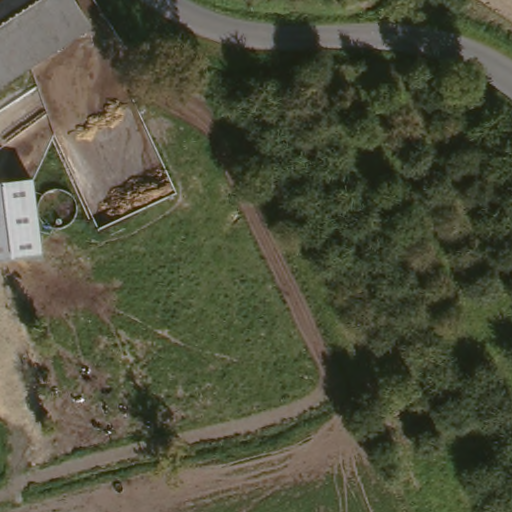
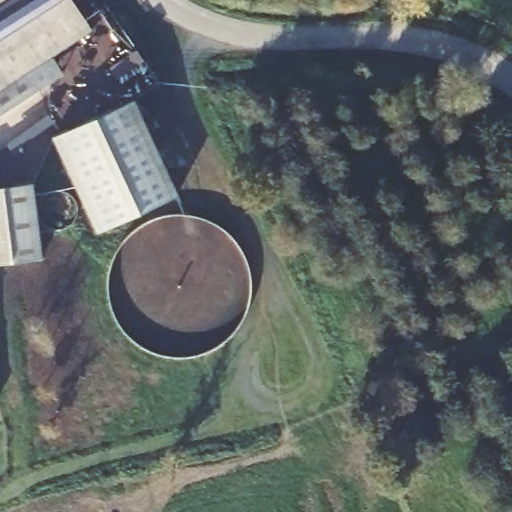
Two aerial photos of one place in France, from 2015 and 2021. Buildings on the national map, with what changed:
unchanged [(0,0),(3,0),(0,2),(0,0)]
unchanged [(0,87),(0,2),(3,0),(75,0),(94,26),(0,87)]
new [(0,114),(0,87),(31,68),(38,89),(0,114)]
new [(135,99),(178,193),(97,232),(52,138),(135,99)]
unchanged [(0,262),(0,186),(34,181),(42,257),(0,262)]

